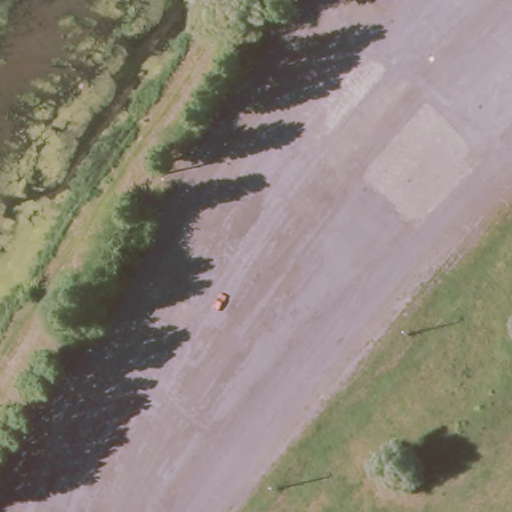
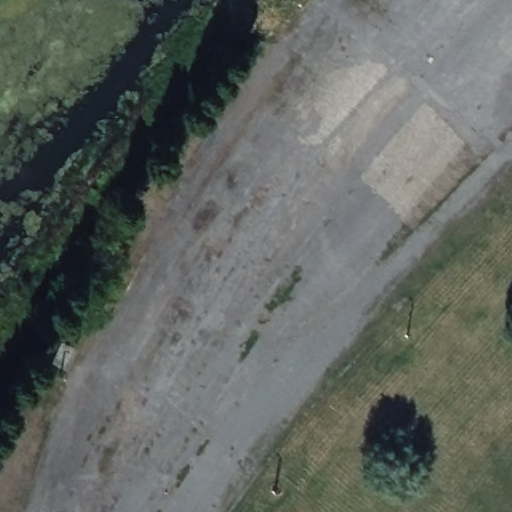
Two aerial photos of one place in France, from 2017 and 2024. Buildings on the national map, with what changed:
unchanged [(62,341),(73,346),(63,366),(53,361),(62,341)]

